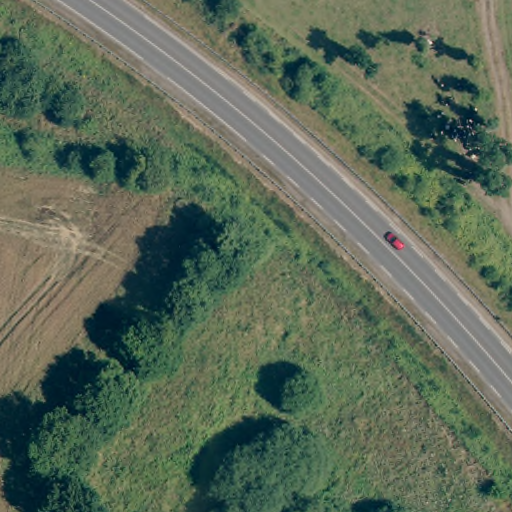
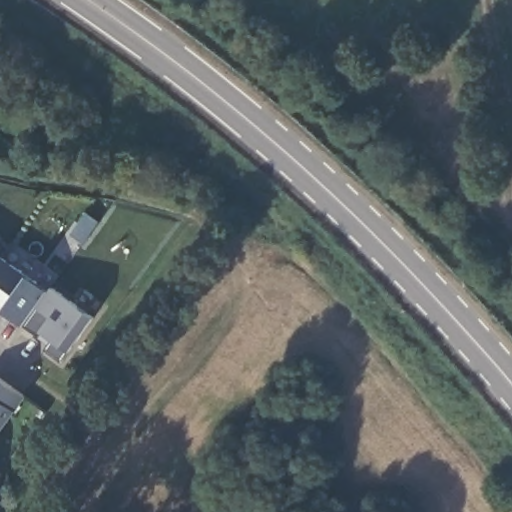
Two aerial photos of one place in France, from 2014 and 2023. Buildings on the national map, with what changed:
new [(1,256),(26,275),(48,293),(51,287),(66,297),(93,317),(69,352),(61,360),(46,350),(53,340),(42,331),(38,335),(1,311),(0,311),(0,258),(1,256)]
new [(25,397),(0,430),(0,379),(25,397)]

